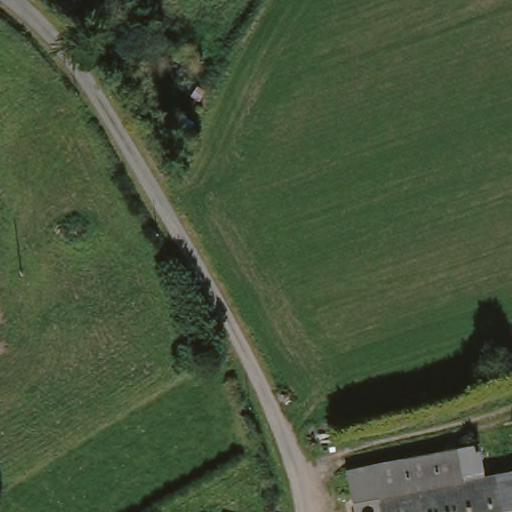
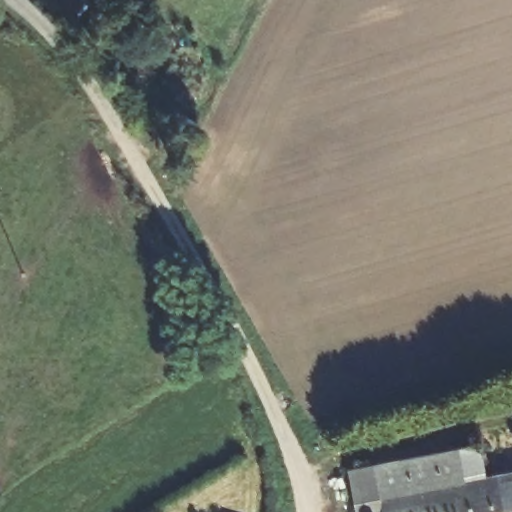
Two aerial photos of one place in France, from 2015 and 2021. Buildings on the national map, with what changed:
unchanged [(512,473),(512,512),(355,512),(348,471),(480,446),(486,478),(512,473)]

